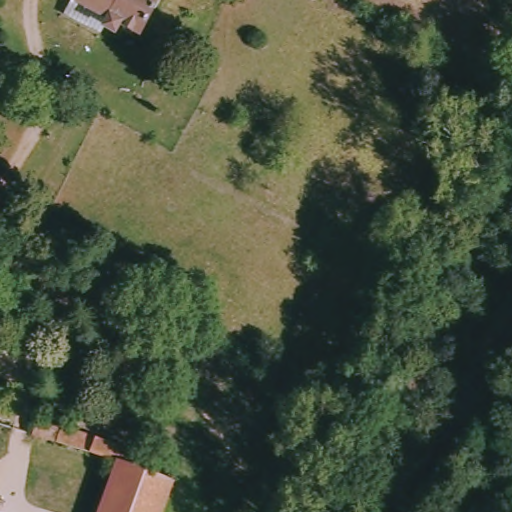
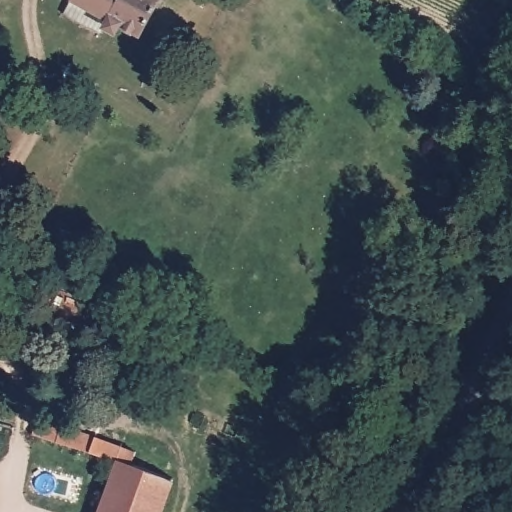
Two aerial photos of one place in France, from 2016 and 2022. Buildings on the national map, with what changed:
unchanged [(121,26),(116,34),(100,26),(104,17),(72,0),(159,0),(140,36),(121,26)]
unchanged [(111,453),(110,457),(27,429),(29,412),(131,446),(127,460),(111,453)]
unchanged [(110,457),(111,453),(127,460),(169,476),(156,512),(90,512),(110,457)]

